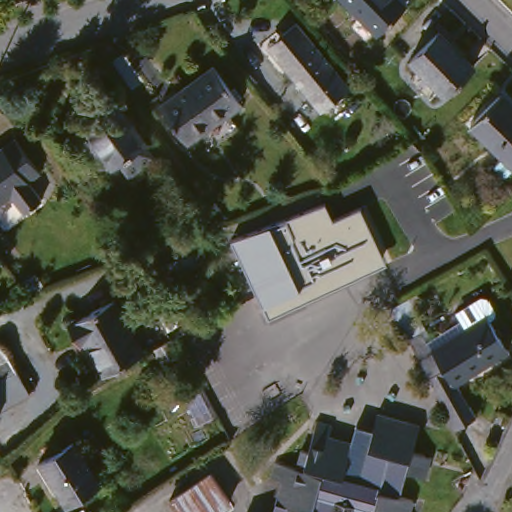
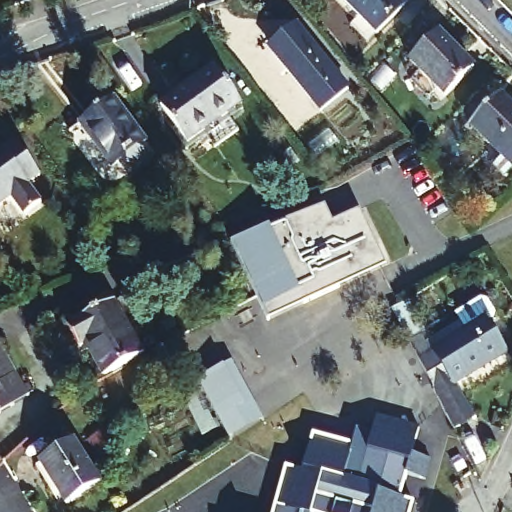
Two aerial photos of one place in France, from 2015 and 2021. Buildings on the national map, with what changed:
unchanged [(403,8),(374,36),(338,0),(395,0),(403,8)]
unchanged [(347,90),(318,113),(270,54),(267,50),(281,37),(294,26),(347,90)]
unchanged [(436,35),(472,71),(443,99),(408,64),(436,35)]
unchanged [(204,137),(201,134),(186,145),(158,107),(210,69),(239,107),(240,111),(204,137)]
unchanged [(490,169),(499,159),(468,128),(498,97),(512,111),(512,172),(503,182),(490,169)]
unchanged [(111,101),(144,146),(110,171),(76,126),(111,101)]
unchanged [(44,174),(31,184),(45,202),(26,216),(13,197),(0,207),(0,154),(18,141),(44,174)]
unchanged [(269,317),(263,305),(233,241),(270,226),(324,205),(333,222),(359,209),(385,265),(269,317)]
unchanged [(162,280),(184,267),(189,277),(168,289),(162,280)]
unchanged [(468,336),(458,317),(484,302),(489,304),(498,318),(497,324),(491,327),(511,360),(459,392),(481,426),(459,439),(440,402),(414,349),(407,335),(398,318),(414,309),(429,339),(424,342),(434,357),(468,336)]
unchanged [(115,307),(145,361),(106,383),(87,349),(81,352),(70,332),(115,307)]
unchanged [(174,357),(157,367),(150,354),(168,345),(174,357)]
unchanged [(0,414),(0,349),(29,397),(0,414)]
new [(264,420),(228,440),(197,381),(233,360),(264,420)]
unchanged [(332,439),(354,445),(358,428),(374,433),(379,416),(423,427),(415,455),(435,461),(429,482),(409,476),(404,497),(398,495),(397,498),(417,504),(415,512),(276,512),(283,485),(272,482),(275,465),(297,471),(302,452),(310,455),(319,423),(335,428),(332,439)]
unchanged [(76,443),(103,486),(69,507),(42,466),(76,443)]
unchanged [(208,475),(230,509),(225,512),(171,512),(165,503),(208,475)]

